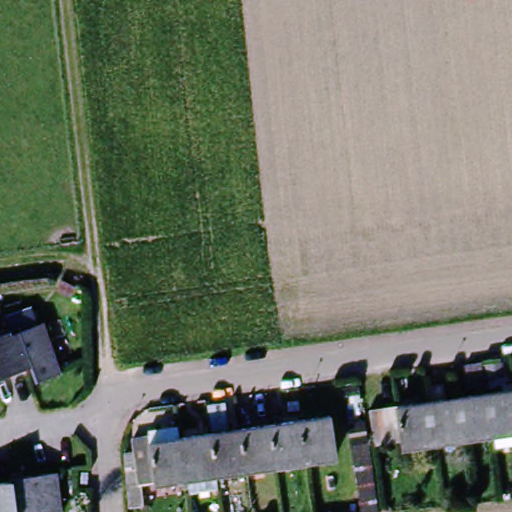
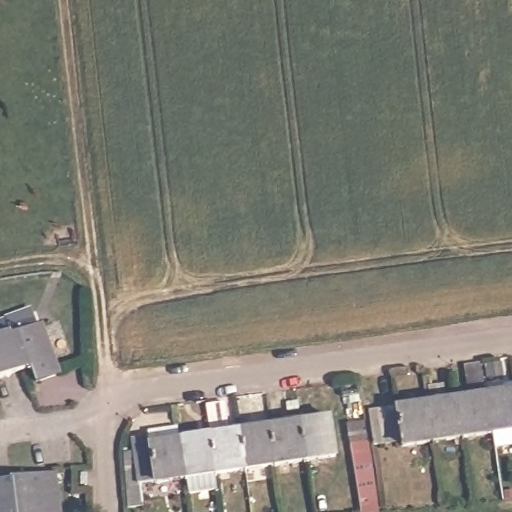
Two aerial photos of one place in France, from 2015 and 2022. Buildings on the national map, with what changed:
unchanged [(13,335),(14,339),(45,328),(61,377),(39,385),(34,371),(27,373),(10,380),(0,348),(0,340),(13,335)]
unchanged [(10,380),(8,380),(0,383),(0,348),(10,380)]
unchanged [(493,388),(476,391),(472,368),(473,368),(490,366),(493,388)]
unchanged [(346,398),(345,383),(363,381),(365,396),(346,398)]
unchanged [(451,385),(454,401),(466,399),(472,435),(442,440),(435,402),(433,388),(451,385)]
unchanged [(512,391),(512,427),(504,428),(499,393),(512,391)]
unchanged [(466,399),(499,393),(504,428),(472,435),(466,399)]
unchanged [(387,411),(406,408),(435,402),(442,440),(412,445),(411,437),(392,441),(381,442),(376,413),(387,411)]
unchanged [(224,413),(228,440),(240,437),(247,476),(217,481),(212,443),(208,415),(224,413)]
unchanged [(300,427),(332,421),(339,460),(305,466),(300,427)]
unchanged [(273,432),(300,427),(305,466),(277,471),(273,432)]
unchanged [(240,437),(273,432),(277,471),(247,476),(240,437)]
unchanged [(125,467),(125,447),(128,447),(148,444),(160,437),(176,435),(178,448),(184,487),(135,495),(125,497),(125,467)]
unchanged [(184,487),(178,448),(212,443),(217,481),(184,487)]
unchanged [(62,512),(3,512),(0,491),(0,484),(20,481),(20,480),(57,475),(62,512)]
unchanged [(3,512),(0,512),(0,491),(3,512)]

